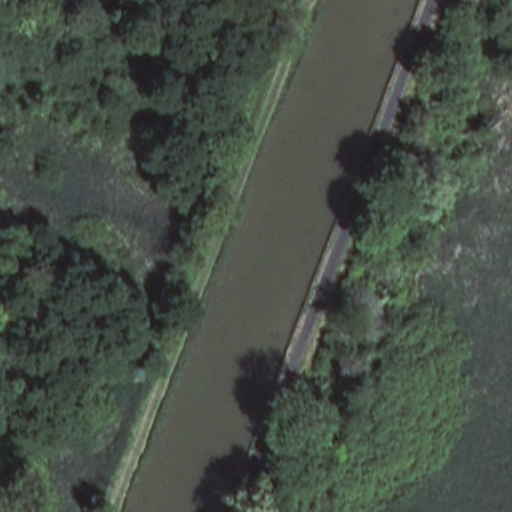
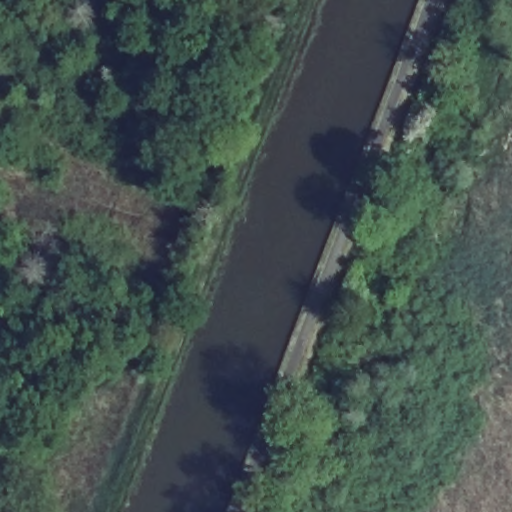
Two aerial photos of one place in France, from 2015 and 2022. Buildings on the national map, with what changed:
[]

